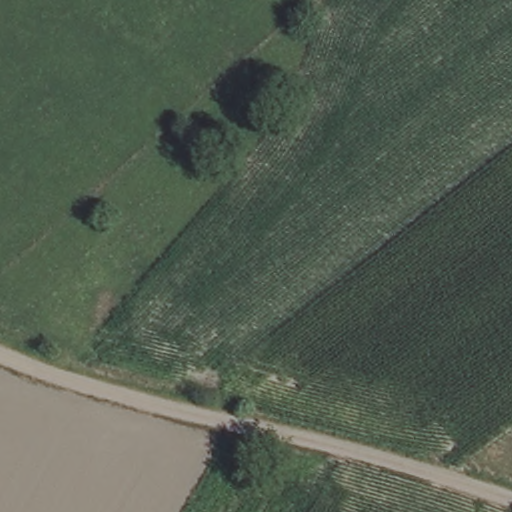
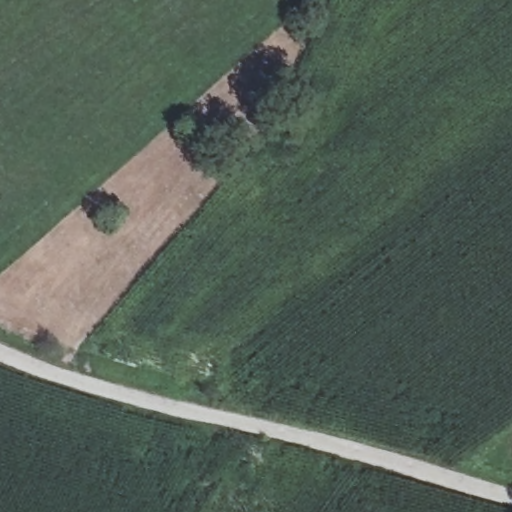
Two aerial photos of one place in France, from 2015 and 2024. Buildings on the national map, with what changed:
[]

